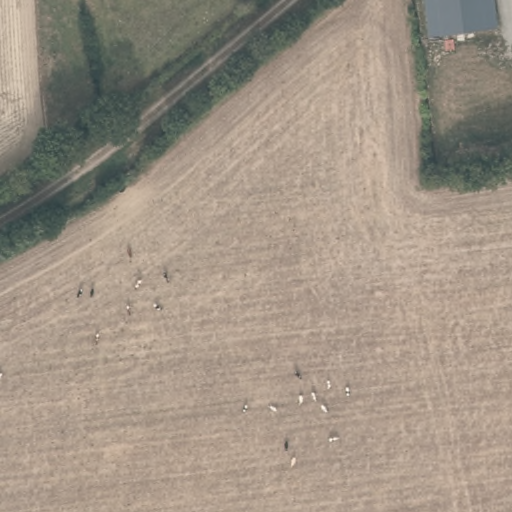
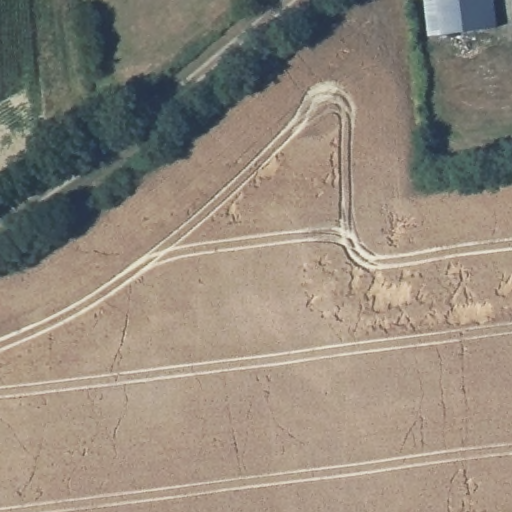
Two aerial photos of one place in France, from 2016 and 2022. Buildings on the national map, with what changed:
unchanged [(498,27),(432,35),(428,0),(495,0),(498,27)]

